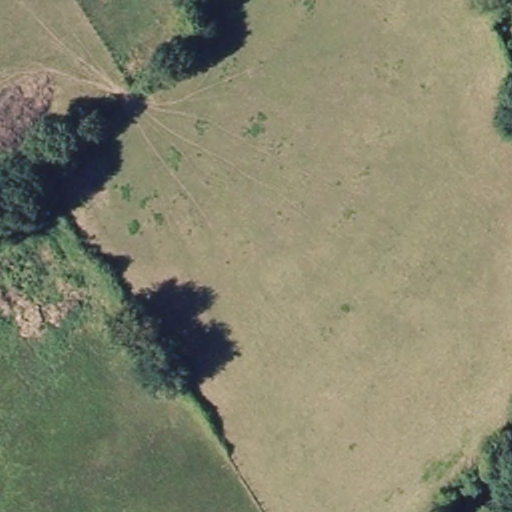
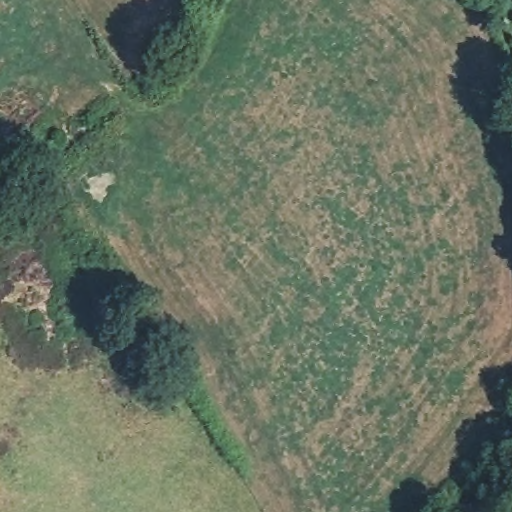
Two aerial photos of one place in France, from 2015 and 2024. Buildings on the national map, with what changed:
[]

